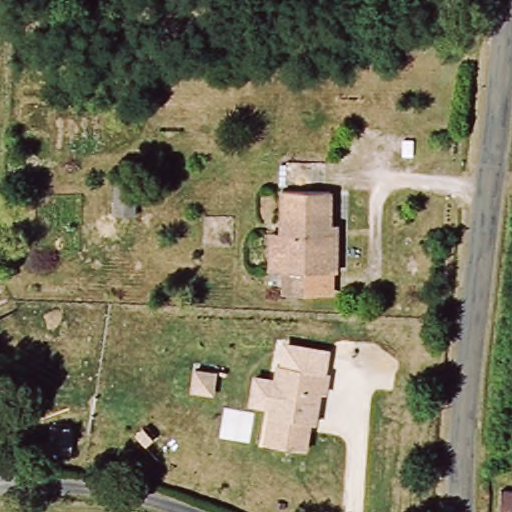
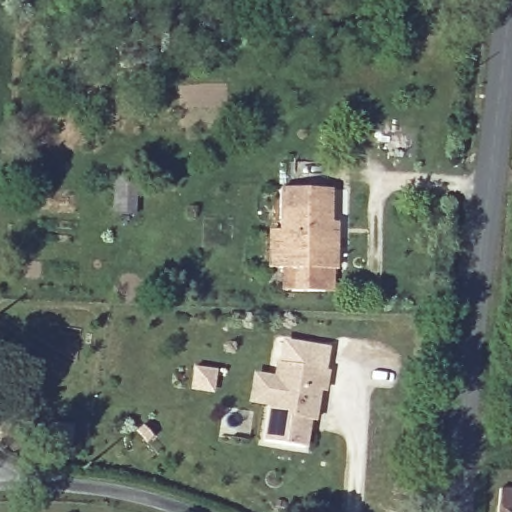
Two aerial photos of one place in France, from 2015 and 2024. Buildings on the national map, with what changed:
unchanged [(280,167),(324,166),(323,192),(281,194),(280,167)]
unchanged [(137,191),(137,213),(112,210),(115,174),(147,175),(146,191),(137,191)]
unchanged [(323,297),(284,297),(284,275),(275,275),(265,275),(265,236),(276,235),(276,192),(281,194),(323,192),(327,193),(326,226),(335,226),(334,255),(334,271),(333,297),(323,297)]
unchanged [(305,446),(266,440),(278,362),(328,370),(325,390),(321,389),(317,410),(315,420),(309,420),(305,446)]
unchanged [(64,449),(44,448),(46,422),(66,423),(64,449)]
unchanged [(499,495),(512,495),(512,512),(498,512),(499,495)]

